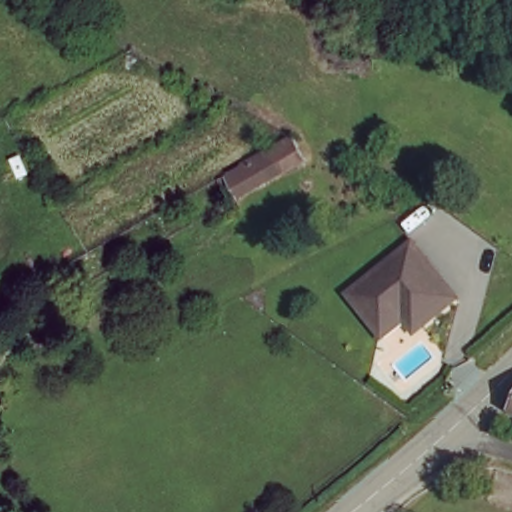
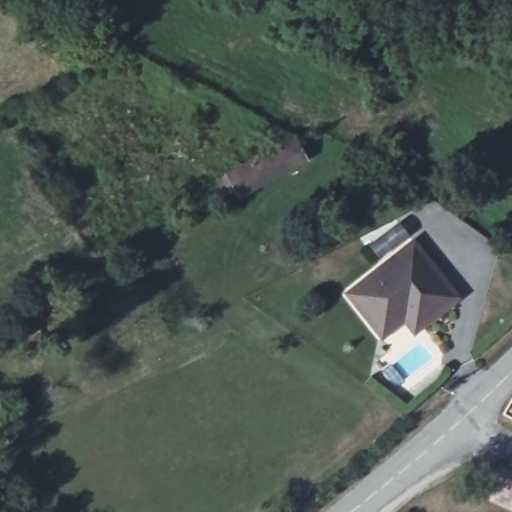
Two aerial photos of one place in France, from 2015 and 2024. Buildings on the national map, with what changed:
unchanged [(305,159),(244,194),(233,174),(293,139),(305,159)]
unchanged [(407,318),(385,337),(350,293),(374,273),(387,262),(414,240),(460,296),(427,322),(417,331),(407,318)]

